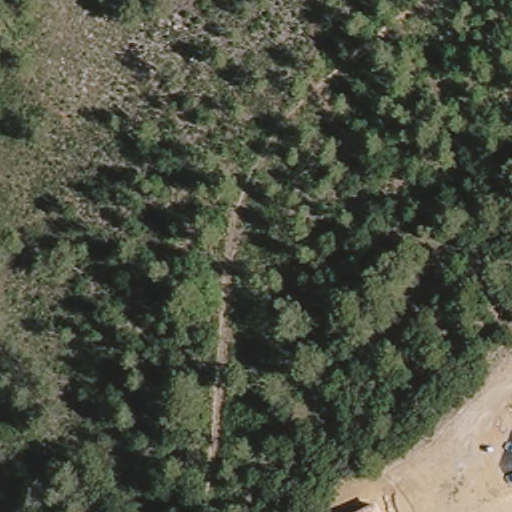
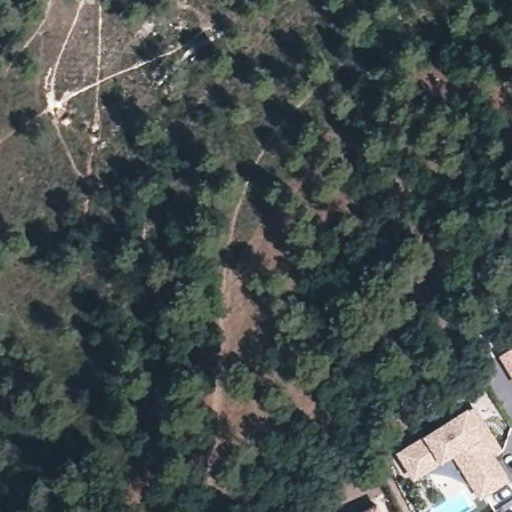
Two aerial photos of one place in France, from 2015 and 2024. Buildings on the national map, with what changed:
new [(507,365),(498,350),(512,341),(512,374),(507,365)]
new [(506,452),(499,457),(510,478),(480,498),(454,457),(445,462),(413,480),(396,453),(476,405),(506,452)]
unchanged [(382,512),(363,512),(379,505),(382,512)]

